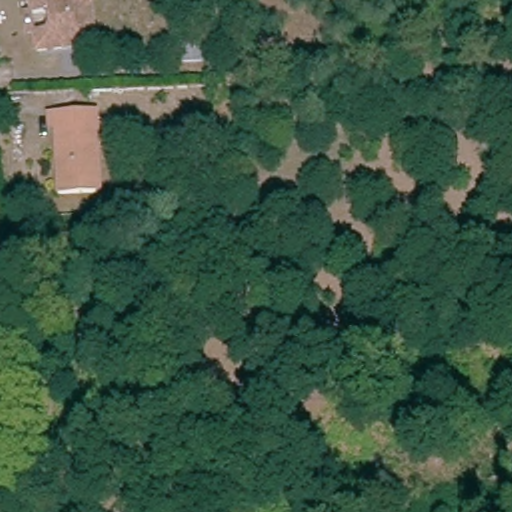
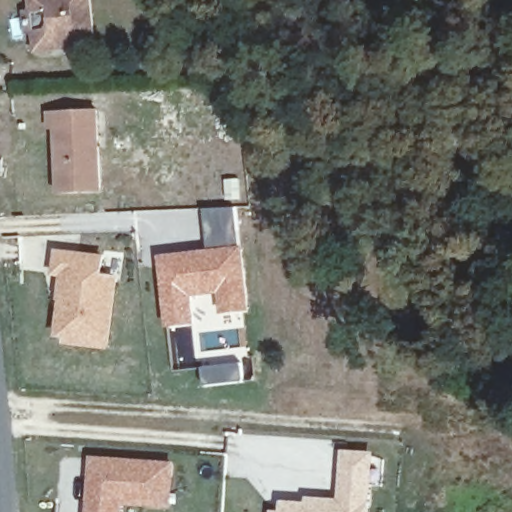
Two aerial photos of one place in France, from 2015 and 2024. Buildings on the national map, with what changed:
unchanged [(64,45),(40,49),(37,30),(31,31),(28,11),(34,10),(33,0),(91,0),(96,35),(76,37),(77,43),(64,45)]
unchanged [(96,114),(99,196),(56,196),(54,113),(96,114)]
new [(236,207),(242,244),(205,249),(199,209),(236,207)]
new [(205,249),(242,244),(251,311),(221,316),(216,296),(194,299),(195,325),(166,328),(157,255),(205,249)]
new [(106,256),(104,275),(118,275),(110,350),(63,345),(64,338),(54,337),(60,277),(52,276),(55,248),(106,256)]
new [(241,361),(244,383),(201,388),(198,366),(241,361)]
new [(281,500),(306,502),(307,496),(337,498),(341,450),(375,452),(371,512),(270,512),(270,510),(280,510),(281,500)]
new [(168,507),(122,503),(121,512),(89,512),(93,456),(172,463),(168,507)]

